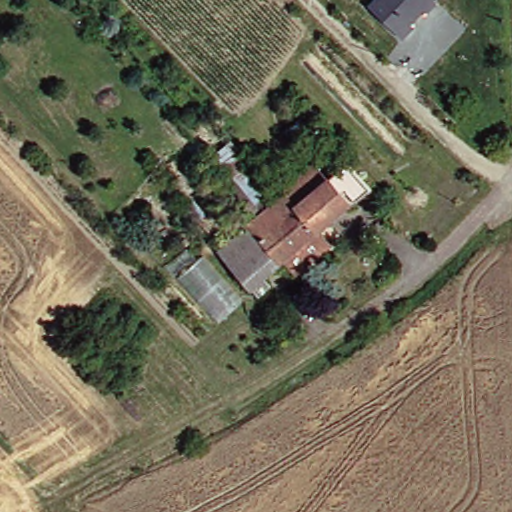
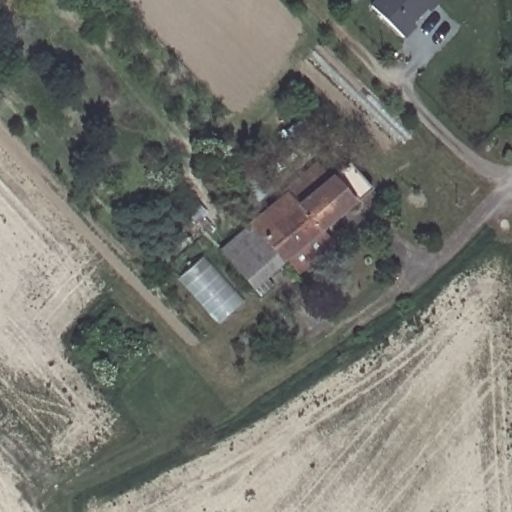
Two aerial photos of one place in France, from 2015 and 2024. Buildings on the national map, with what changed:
unchanged [(373,0),(435,0),(437,4),(430,14),(425,10),(412,23),(416,27),(403,39),(368,5),(373,0)]
unchanged [(234,140),(246,155),(252,151),(273,180),(256,193),(264,204),(256,212),(213,155),(234,140)]
unchanged [(292,188),(290,187),(322,160),(335,175),(355,158),(377,185),(360,200),(357,197),(287,257),(255,220),(292,188)]
unchanged [(265,291),(257,283),(226,245),(255,220),(287,257),(270,272),(277,281),(265,291)]

